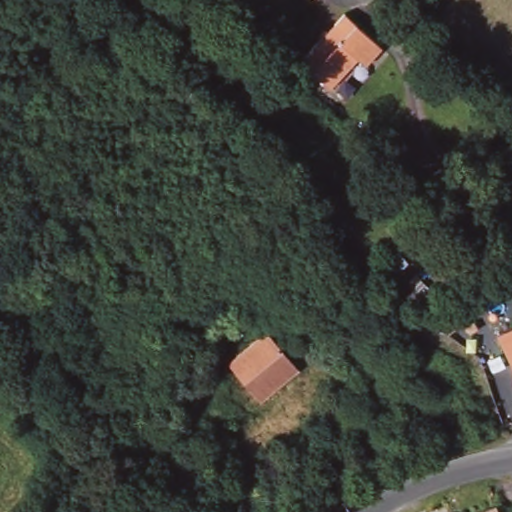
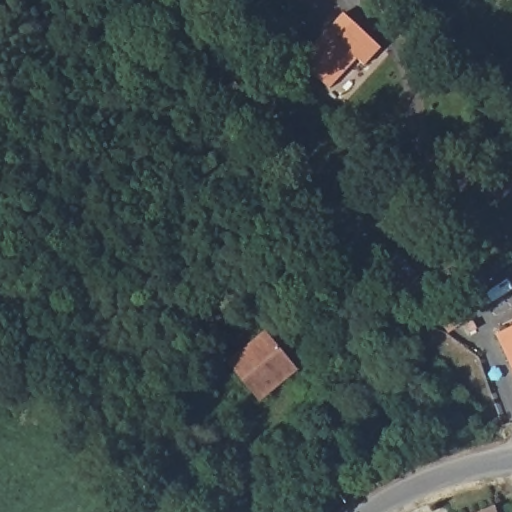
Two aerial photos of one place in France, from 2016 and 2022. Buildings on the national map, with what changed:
unchanged [(380,48),(364,66),(355,58),(328,89),(298,62),(342,13),(380,48)]
unchanged [(492,333),(512,324),(512,382),(503,360),(492,333)]
unchanged [(262,328),(296,365),(260,399),(225,362),(262,328)]
unchanged [(492,508),(493,512),(478,512),(491,506),(492,508)]

